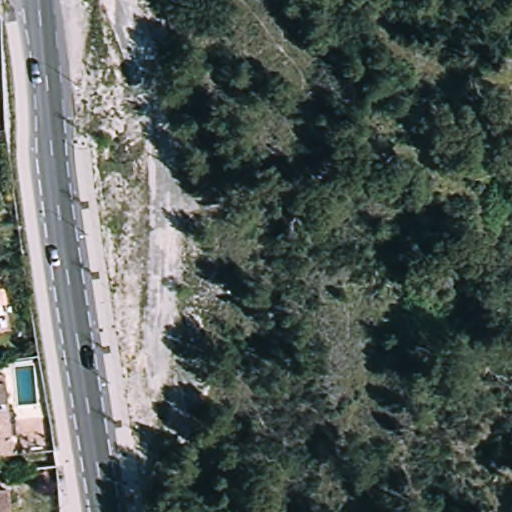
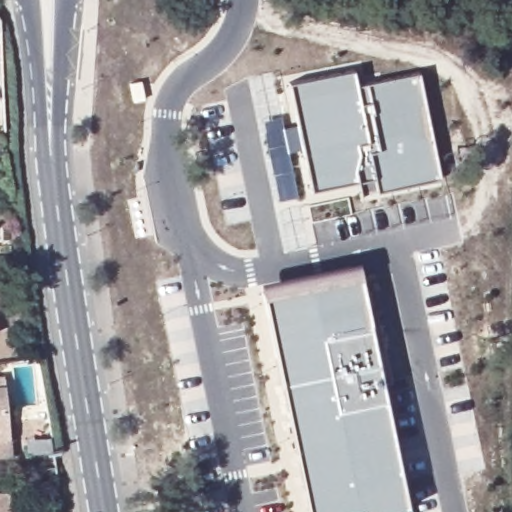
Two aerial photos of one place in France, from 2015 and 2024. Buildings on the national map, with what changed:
new [(352,70),(360,105),(368,102),(365,85),(417,74),(439,181),(375,194),(372,180),(309,192),(287,84),(352,70)]
new [(415,509),(401,512),(314,512),(270,294),(367,274),(415,509)]
unchanged [(4,371),(5,381),(7,405),(8,420),(11,452),(0,453),(0,371),(4,371)]
unchanged [(7,487),(10,512),(0,512),(0,487),(7,487)]

